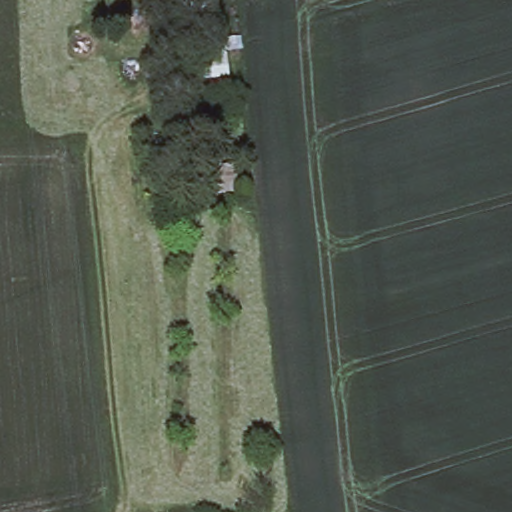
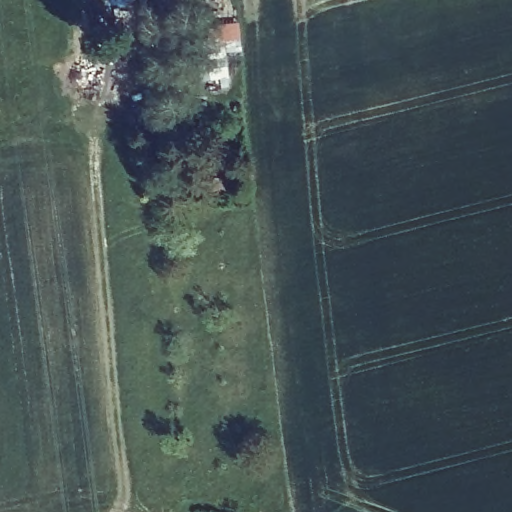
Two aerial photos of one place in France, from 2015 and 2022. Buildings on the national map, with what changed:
unchanged [(204,83),(195,31),(225,27),(233,78),(204,83)]
unchanged [(240,195),(206,197),(205,165),(238,164),(240,195)]

